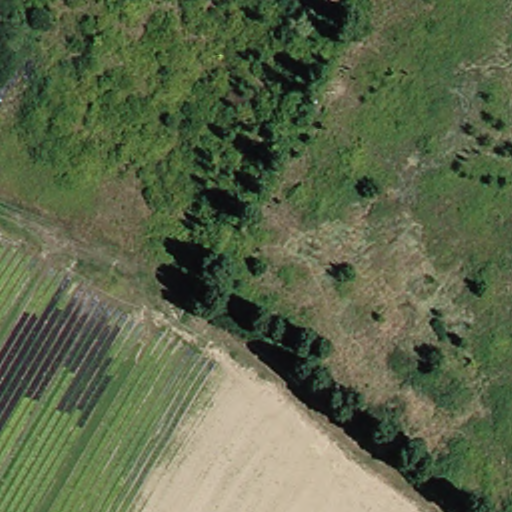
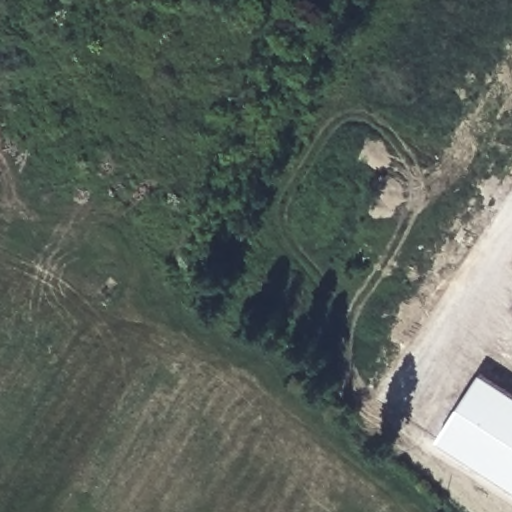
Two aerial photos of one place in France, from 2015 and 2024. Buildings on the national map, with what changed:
new [(440,442),(483,372),(512,391),(512,488),(440,442)]

